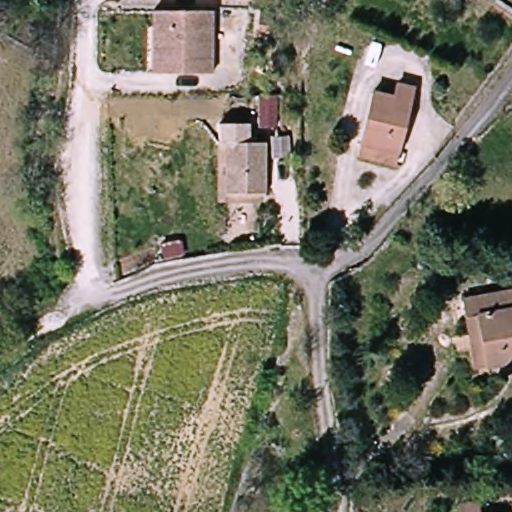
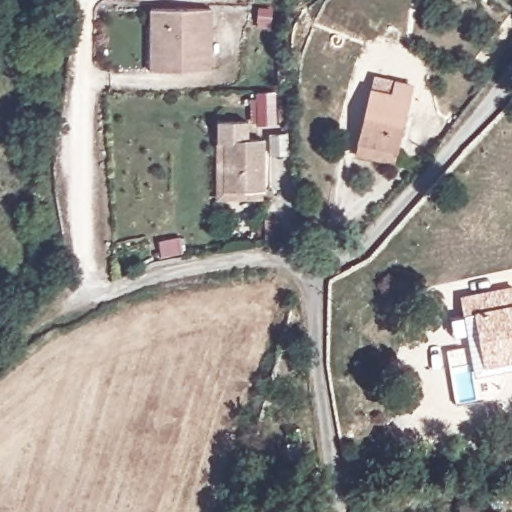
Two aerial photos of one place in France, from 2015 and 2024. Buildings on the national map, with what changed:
unchanged [(210,75),(150,73),(151,55),(152,10),(164,10),(212,11),(210,75)]
unchanged [(395,160),(355,152),(367,98),(388,102),(391,85),(410,89),(395,160)]
unchanged [(267,196),(226,196),(211,195),(213,144),(226,144),(267,145),(267,196)]
unchanged [(462,297),(512,290),(512,362),(482,367),(470,368),(465,317),(462,297)]
unchanged [(458,493),(477,493),(476,510),(499,511),(499,512),(458,512),(458,493)]

